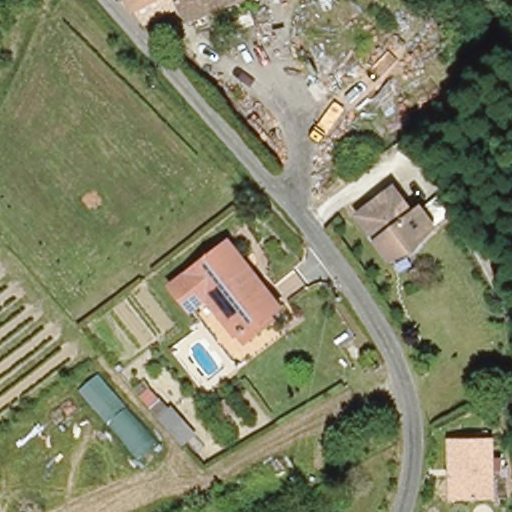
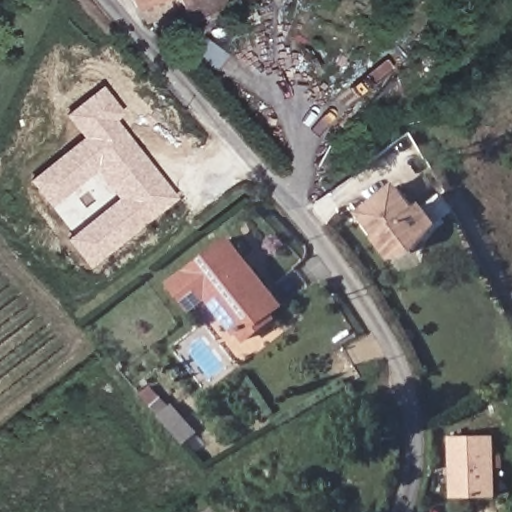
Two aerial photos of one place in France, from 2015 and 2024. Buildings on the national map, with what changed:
unchanged [(140,5),(137,0),(153,0),(140,5)]
unchanged [(194,20),(185,3),(170,9),(165,0),(242,0),(194,20)]
new [(123,114),(116,119),(178,198),(92,268),(67,240),(118,198),(97,170),(52,207),(29,180),(83,136),(65,116),(102,86),(123,114)]
unchanged [(416,215),(424,210),(437,228),(415,252),(391,259),(361,215),(397,188),(416,215)]
unchanged [(281,303),(271,311),(275,316),(247,337),(240,327),(236,330),(207,293),(191,305),(173,280),(229,236),(281,303)]
unchanged [(174,402),(203,433),(184,446),(159,416),(174,402)]
unchanged [(454,439),(497,438),(500,499),(456,501),(454,439)]

